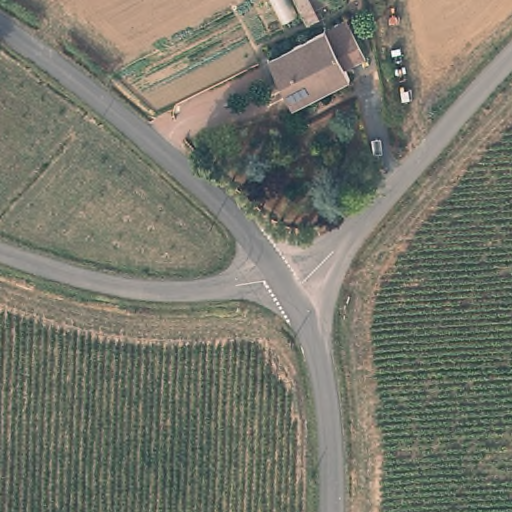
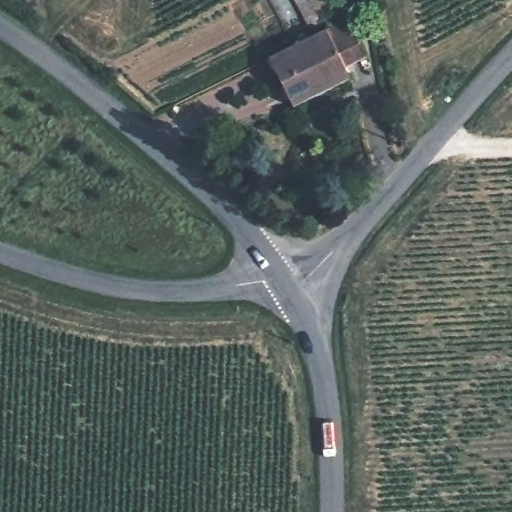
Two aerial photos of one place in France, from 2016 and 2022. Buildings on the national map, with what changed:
unchanged [(305,25),(291,0),(304,0),(314,20),(305,25)]
unchanged [(294,109),(270,62),(348,21),(368,59),(346,71),(351,81),(294,109)]

